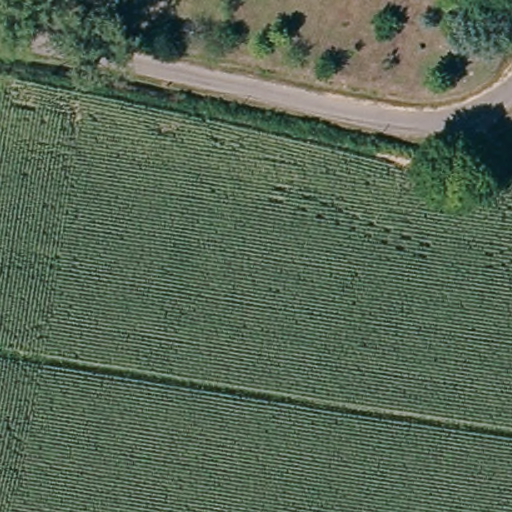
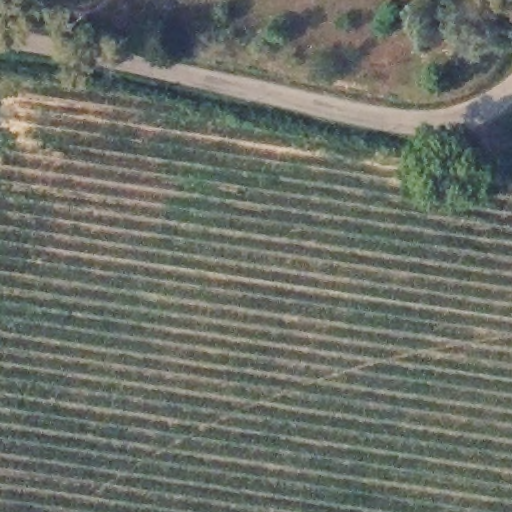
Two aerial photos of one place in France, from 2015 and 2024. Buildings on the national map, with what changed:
unchanged [(75,0),(82,0),(81,1),(75,0)]

